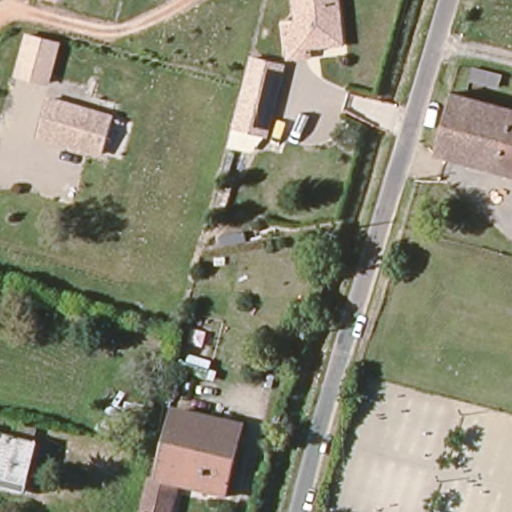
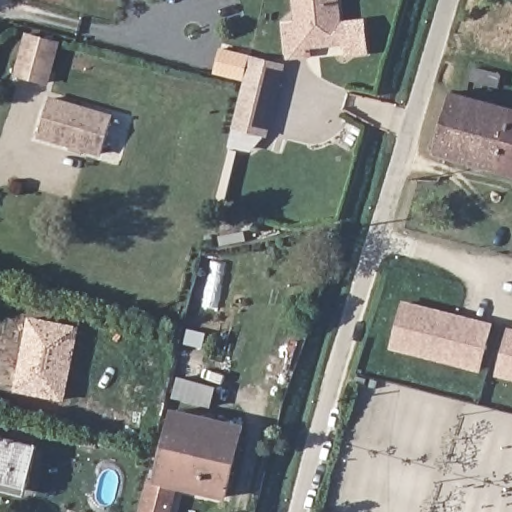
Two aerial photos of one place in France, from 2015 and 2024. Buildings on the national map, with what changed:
unchanged [(321,33),(323,47),(310,48),(311,57),(285,56),(283,24),(297,24),(295,0),(339,0),(340,32),(321,33)]
unchanged [(62,44),(51,82),(20,74),(30,36),(62,44)]
unchanged [(283,67),(267,134),(235,125),(251,58),(283,67)]
unchanged [(494,87),(467,79),(471,67),(497,74),(494,87)]
unchanged [(111,112),(101,149),(37,130),(47,94),(111,112)]
unchanged [(434,158),(450,97),(512,114),(512,179),(434,158)]
new [(492,322),(480,372),(390,349),(402,299),(492,322)]
new [(14,391),(29,316),(80,326),(66,402),(14,391)]
new [(495,376),(507,326),(512,328),(512,380),(495,376)]
demolished [(284,390),(276,426),(259,421),(268,386),(284,390)]
unchanged [(245,428),(226,504),(179,490),(174,512),(148,512),(154,486),(158,487),(175,418),(235,434),(237,426),(245,428)]
unchanged [(31,456),(37,458),(27,498),(0,491),(0,447),(14,451),(18,436),(35,440),(31,456)]

